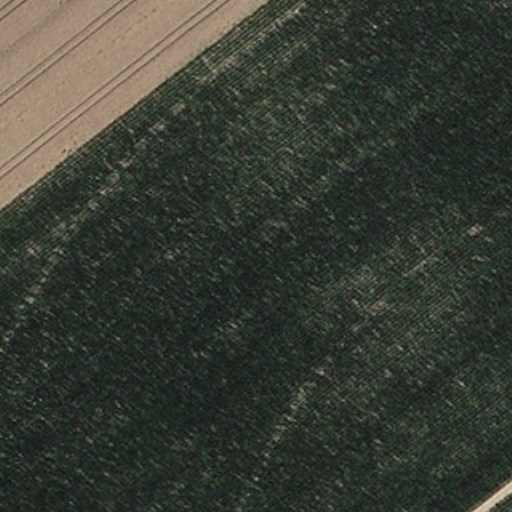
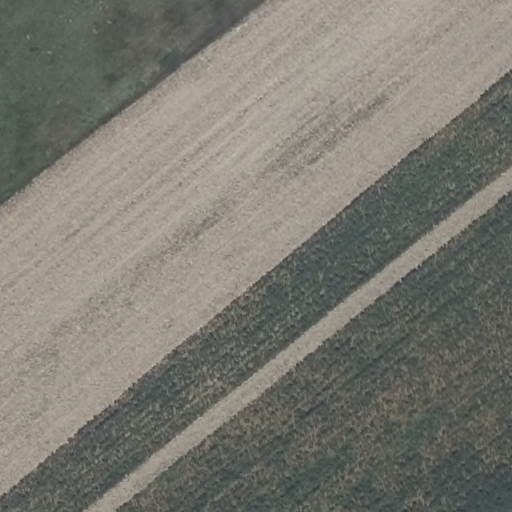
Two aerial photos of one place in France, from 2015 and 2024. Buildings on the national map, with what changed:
[]

